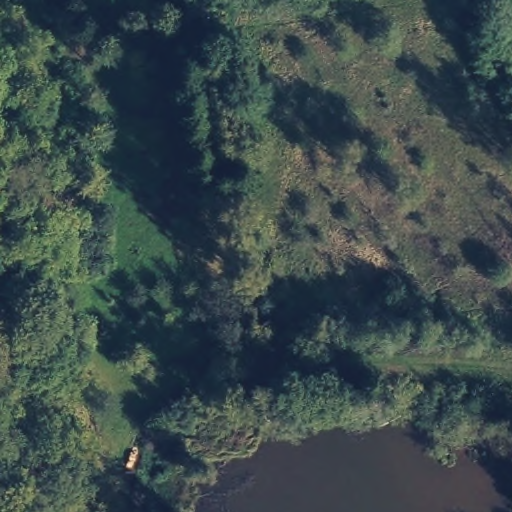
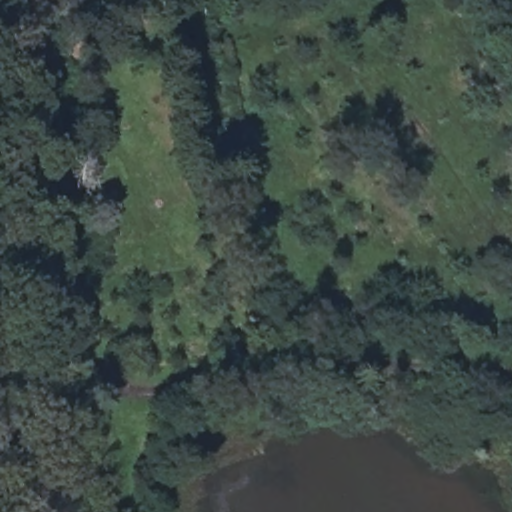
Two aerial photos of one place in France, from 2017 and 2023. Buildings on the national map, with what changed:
[]

